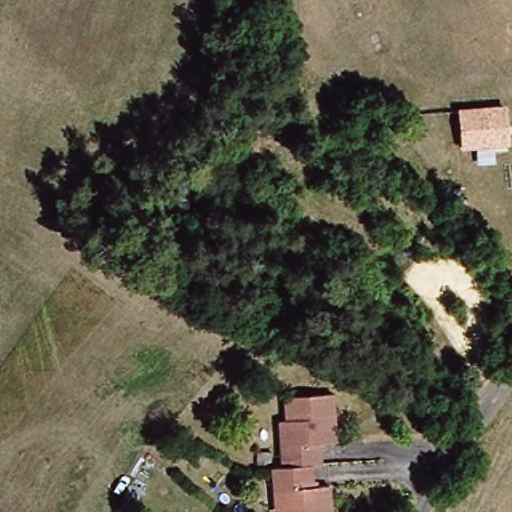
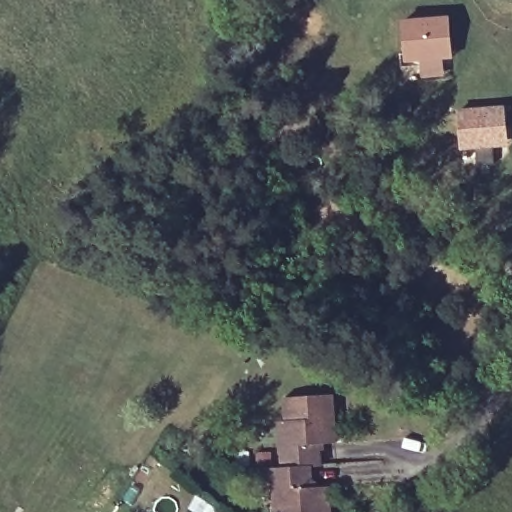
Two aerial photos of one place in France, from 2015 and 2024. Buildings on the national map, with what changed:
new [(453,60),(445,60),(446,77),(422,79),(421,61),(405,61),(401,20),(448,16),(453,60)]
unchanged [(508,147),(461,150),(458,110),(505,106),(508,147)]
unchanged [(274,446),(271,400),(320,397),(321,443),(306,443),(306,468),(297,469),(297,489),(318,488),(319,512),(272,512),(271,492),(263,493),(262,470),(270,469),(267,447),(274,446)]

